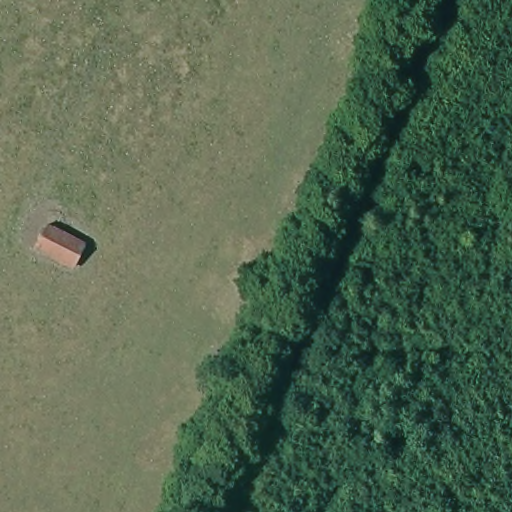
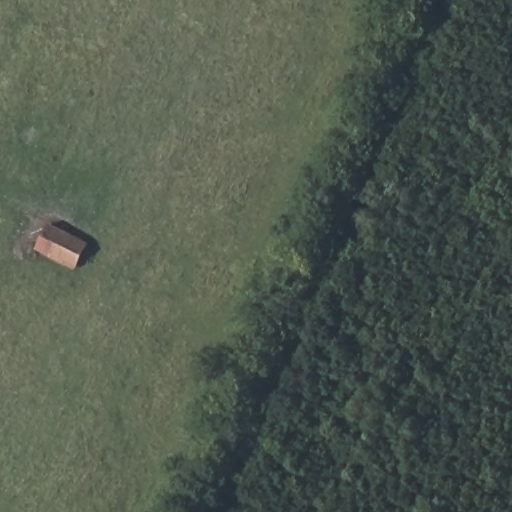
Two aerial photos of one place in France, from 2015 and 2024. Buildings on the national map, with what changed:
unchanged [(90,244),(74,272),(35,253),(50,226),(90,244)]

